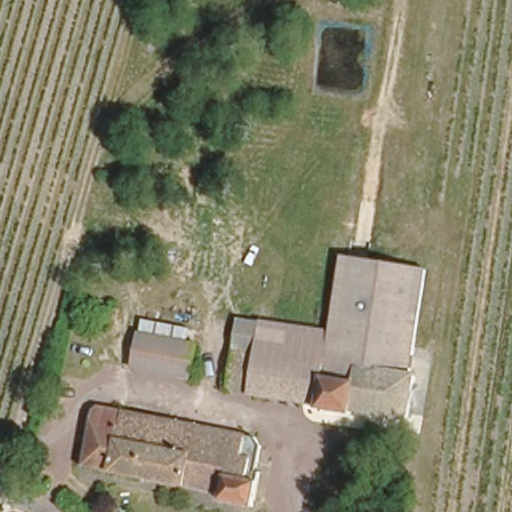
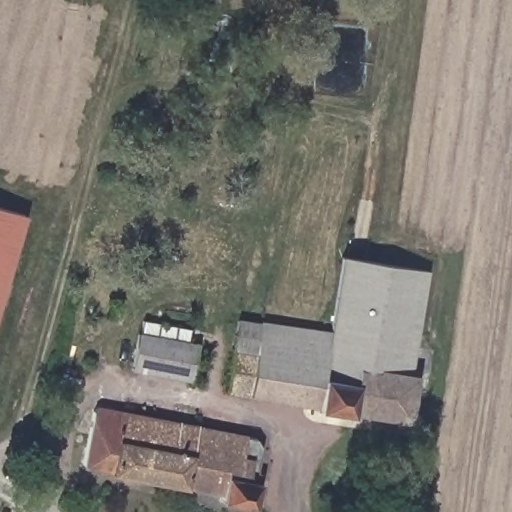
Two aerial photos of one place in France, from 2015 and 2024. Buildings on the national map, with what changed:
new [(25,214),(0,302),(0,207),(25,214)]
unchanged [(395,266),(429,271),(413,377),(418,378),(412,420),(380,416),(357,413),(356,416),(322,412),(323,408),(334,338),(345,258),(395,266)]
unchanged [(323,408),(226,391),(236,326),(334,338),(323,408)]
unchanged [(135,368),(140,332),(199,344),(194,375),(194,378),(188,377),(135,368)]
unchanged [(97,409),(122,413),(129,414),(124,443),(130,444),(154,450),(149,479),(86,466),(97,409)]
unchanged [(154,450),(130,444),(124,443),(129,414),(255,439),(244,498),(149,479),(154,450)]

